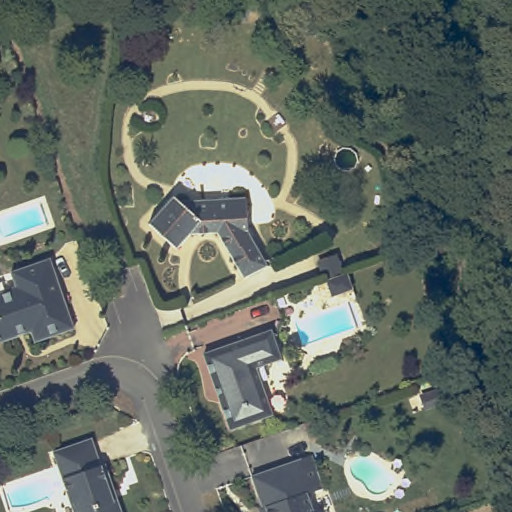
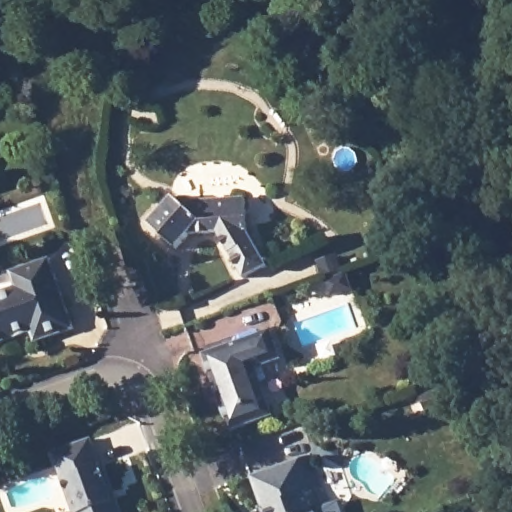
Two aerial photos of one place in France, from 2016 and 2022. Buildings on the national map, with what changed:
unchanged [(152,221),(177,194),(183,199),(251,196),(253,225),(275,260),(250,270),(224,230),(194,231),(181,245),(152,221)]
unchanged [(13,269),(51,256),(76,324),(36,338),(33,328),(0,338),(0,291),(18,285),(13,269)]
unchanged [(336,277),(340,291),(326,296),(321,282),(336,277)]
unchanged [(207,361),(275,338),(285,367),(258,376),(274,422),(234,436),(207,361)]
unchanged [(95,437),(104,463),(108,461),(125,512),(78,512),(57,450),(95,437)]
unchanged [(267,507),(267,505),(256,475),(315,454),(326,487),(310,493),(315,508),(322,510),(323,512),(264,512),(263,508),(267,507)]

